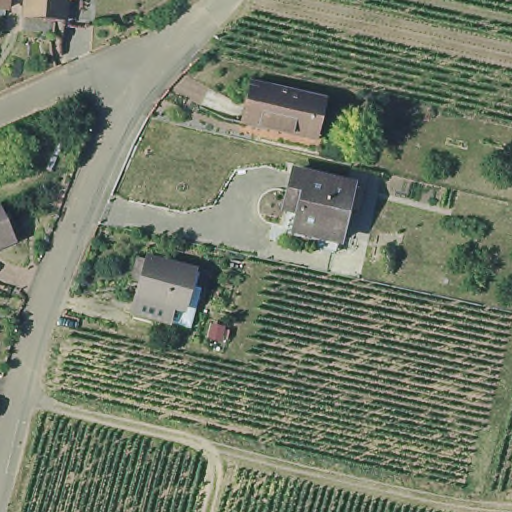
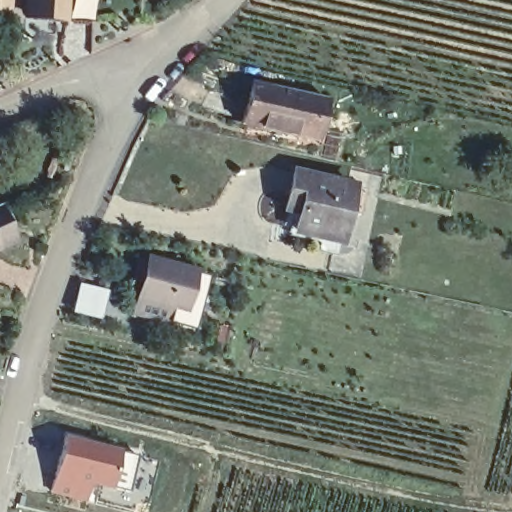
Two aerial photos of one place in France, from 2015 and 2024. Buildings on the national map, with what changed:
unchanged [(0,0),(11,0),(10,12),(0,12),(0,0)]
unchanged [(63,15),(26,12),(27,0),(66,0),(65,15),(63,15)]
unchanged [(63,20),(63,15),(65,0),(95,0),(94,22),(63,20)]
unchanged [(330,97),(320,137),(243,120),(253,79),(330,97)]
unchanged [(359,205),(350,204),(345,225),(340,224),(338,232),(294,221),(295,214),(298,202),(284,199),(292,162),(352,177),(365,180),(359,205)]
unchanged [(0,201),(3,200),(20,236),(0,245),(0,201)]
unchanged [(194,278),(200,280),(189,320),(167,315),(133,306),(147,252),(190,263),(197,266),(194,278)]
new [(64,433),(118,448),(113,472),(115,473),(112,490),(90,484),(85,502),(49,492),(64,433)]

